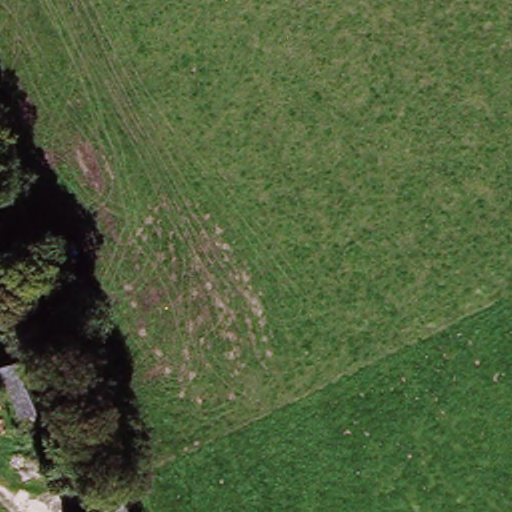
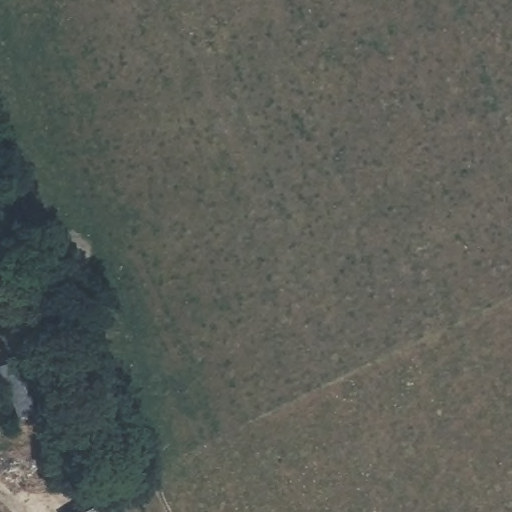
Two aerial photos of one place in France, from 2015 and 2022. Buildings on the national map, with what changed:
unchanged [(47,353),(61,388),(47,397),(55,408),(14,423),(0,381),(0,370),(47,353)]

